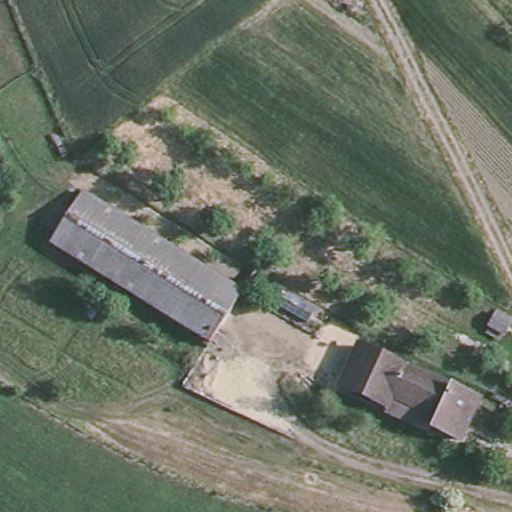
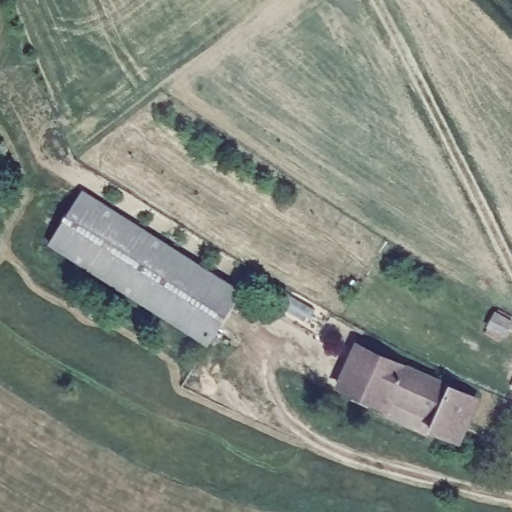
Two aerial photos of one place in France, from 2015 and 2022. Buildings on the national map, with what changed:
unchanged [(81,191),(242,292),(210,343),(50,242),(81,191)]
unchanged [(511,321),(504,335),(488,326),(495,313),(511,321)]
unchanged [(472,394),(454,435),(426,422),(431,411),(386,391),(381,402),(335,381),(353,340),(472,394)]

